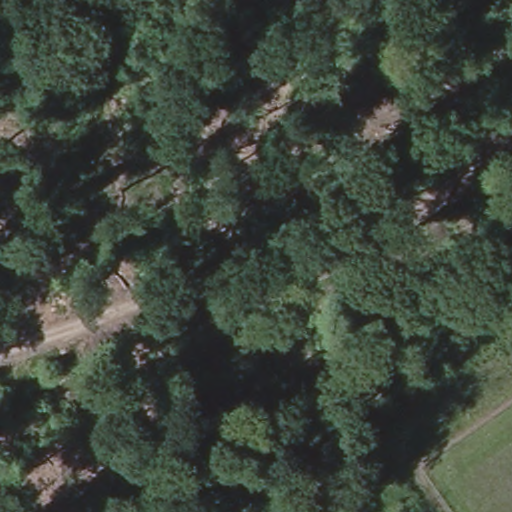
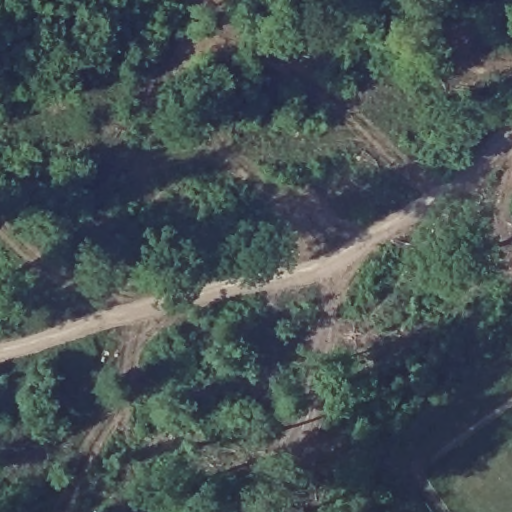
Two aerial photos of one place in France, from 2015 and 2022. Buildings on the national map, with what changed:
[]

